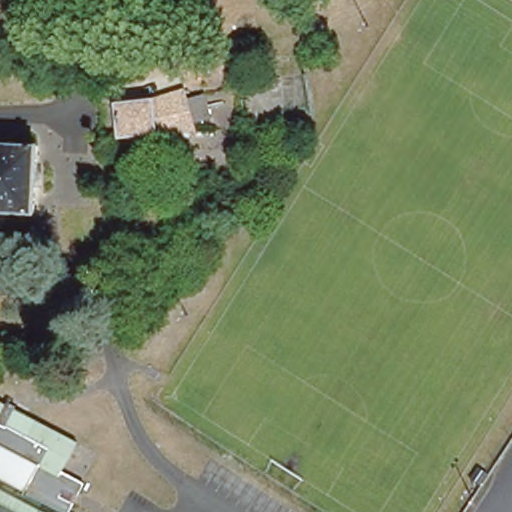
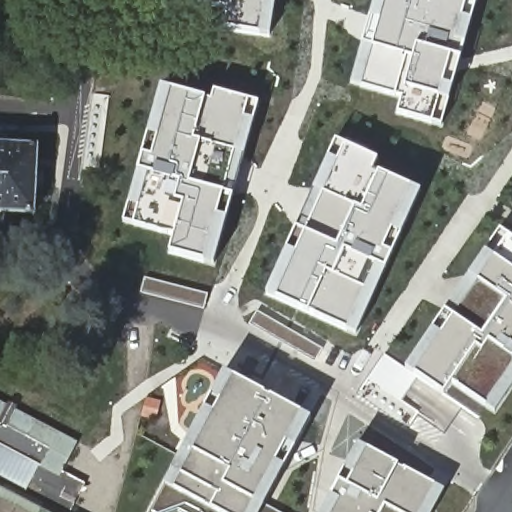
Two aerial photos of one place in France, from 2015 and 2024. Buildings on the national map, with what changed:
new [(182,91),(216,98),(226,8),(193,2),(193,0),(274,0),(270,39),(277,41),(265,102),(251,98),(205,258),(174,248),(179,234),(127,221),(165,86),(182,91)]
new [(420,195),(356,336),(268,293),(342,142),(358,96),(380,0),(477,0),(420,195)]
demolished [(152,135),(116,135),(111,100),(149,99),(183,89),(198,142),(152,135)]
unchanged [(30,219),(0,217),(0,149),(34,151),(30,219)]
new [(512,236),(512,379),(490,412),(486,408),(457,445),(416,416),(408,428),(358,395),(385,355),(412,371),(505,231),(512,236)]
new [(262,512),(151,512),(233,375),(311,420),(262,512)]
unchanged [(62,465),(83,476),(70,500),(96,512),(0,512),(0,390),(79,431),(62,465)]
new [(436,512),(326,512),(362,447),(446,492),(436,512)]

